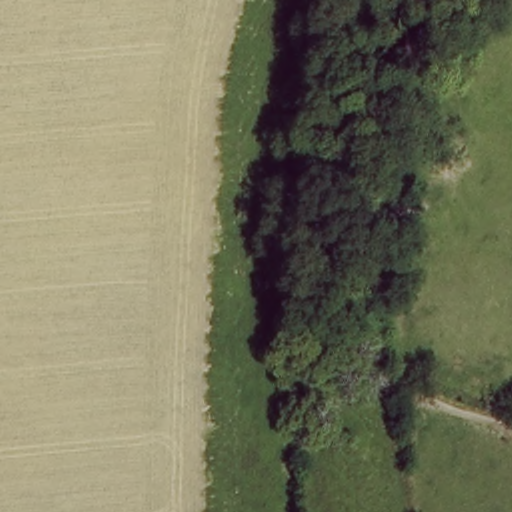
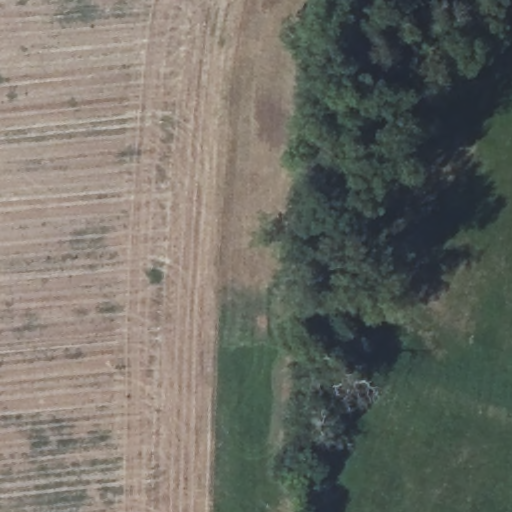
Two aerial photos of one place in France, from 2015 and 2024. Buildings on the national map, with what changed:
[]

